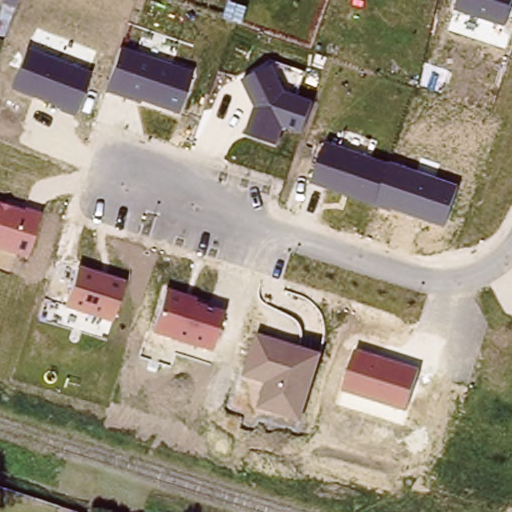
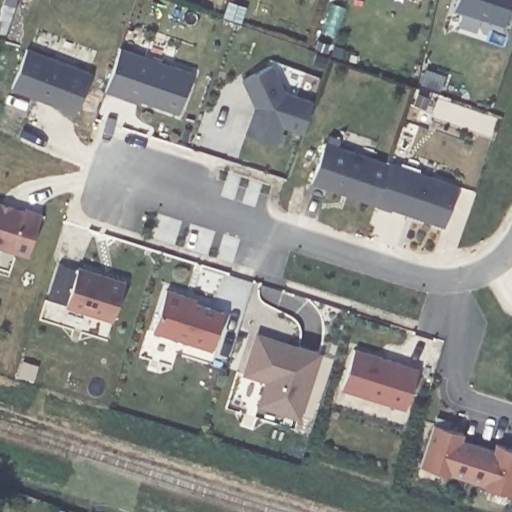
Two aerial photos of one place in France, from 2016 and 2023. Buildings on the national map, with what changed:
unchanged [(507,26),(456,11),(459,0),(512,0),(512,7),(507,26)]
unchanged [(121,48),(193,72),(179,114),(141,101),(140,104),(106,91),(121,48)]
unchanged [(27,49),(92,74),(77,116),(12,90),(27,49)]
unchanged [(256,106),(242,80),(273,65),(287,91),(313,101),(302,132),(282,127),(277,144),(245,134),(256,106)]
unchanged [(325,144),(459,187),(444,227),(312,183),(325,144)]
unchanged [(22,210),(23,207),(41,213),(28,257),(0,248),(0,204),(22,210)]
unchanged [(79,267),(125,281),(112,321),(66,307),(79,267)]
unchanged [(167,291),(197,300),(196,302),(223,311),(212,350),(155,332),(167,291)]
unchanged [(257,333),(321,353),(299,420),(257,408),(265,382),(244,375),(257,333)]
unchanged [(355,350),(418,370),(406,410),(343,390),(355,350)]
new [(465,433),(462,439),(493,448),(496,443),(512,448),(512,495),(421,465),(434,423),(465,433)]

